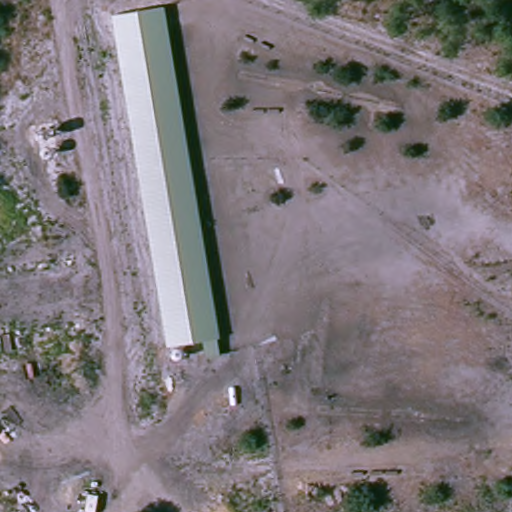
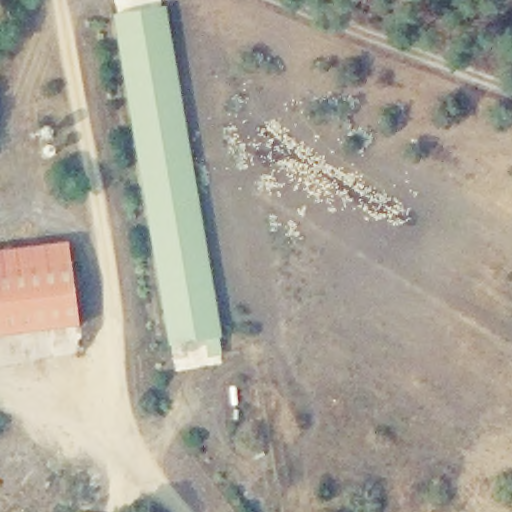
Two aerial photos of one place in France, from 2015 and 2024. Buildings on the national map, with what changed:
unchanged [(218,338),(221,355),(206,358),(204,341),(168,347),(112,15),(165,6),(221,337),(218,338)]
new [(70,262),(78,327),(0,337),(0,271),(70,262)]

